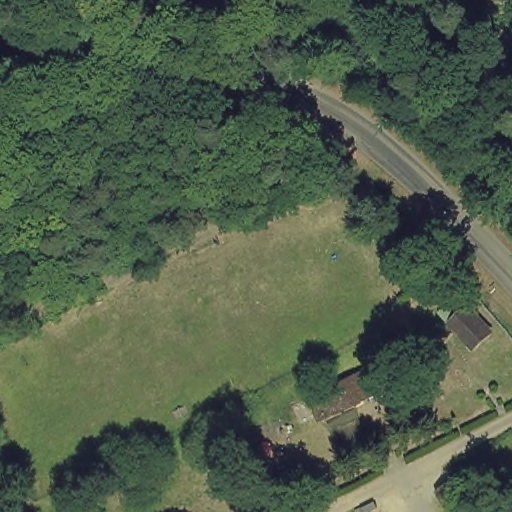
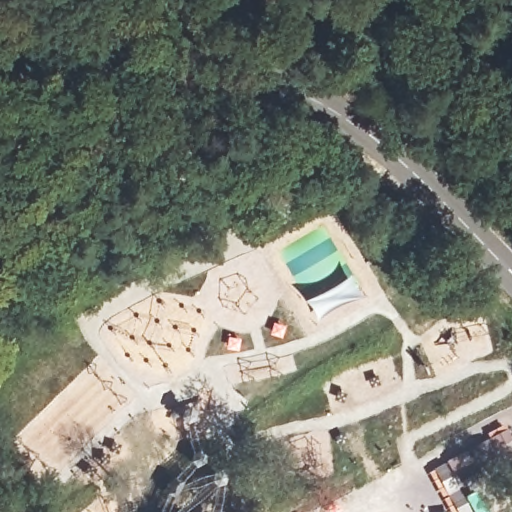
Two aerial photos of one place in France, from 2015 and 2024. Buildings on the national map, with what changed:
unchanged [(472,296),(512,329),(512,331),(492,357),(449,321),(472,296)]
unchanged [(398,357),(409,382),(323,420),(313,398),(398,357)]

